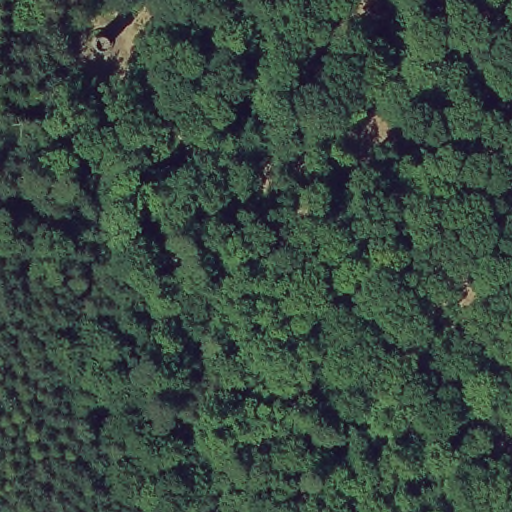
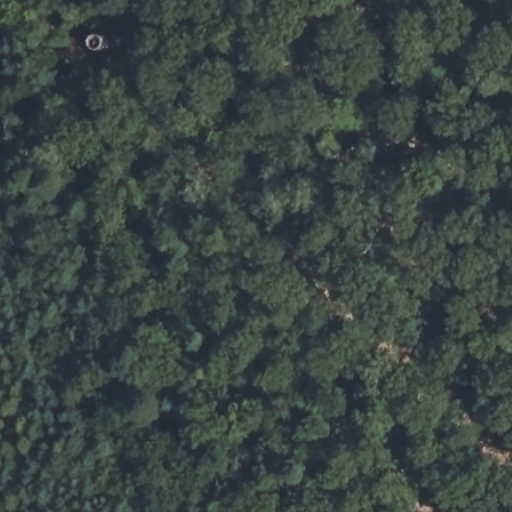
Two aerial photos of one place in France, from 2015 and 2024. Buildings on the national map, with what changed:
unchanged [(107,52),(105,56),(101,58),(98,59),(95,58),(91,56),(88,52),(88,49),(88,45),(91,41),(95,39),(98,39),(101,39),(105,41),(107,45),(108,49),(107,52)]

